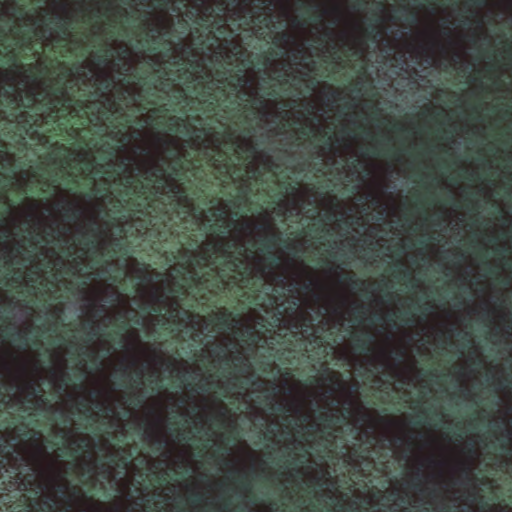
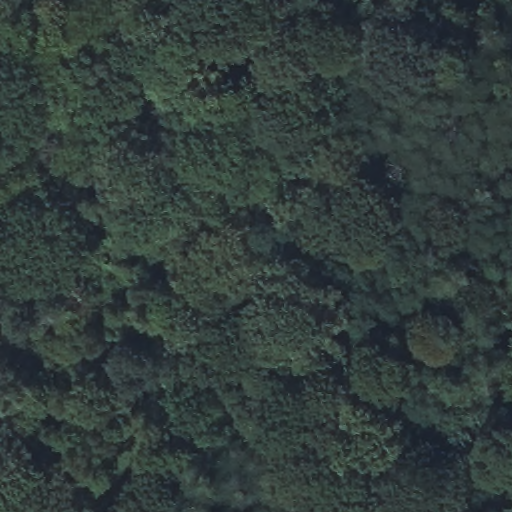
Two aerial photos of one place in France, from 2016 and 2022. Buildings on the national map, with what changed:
unchanged [(257,358),(260,375),(244,378),(241,357),(257,358)]

